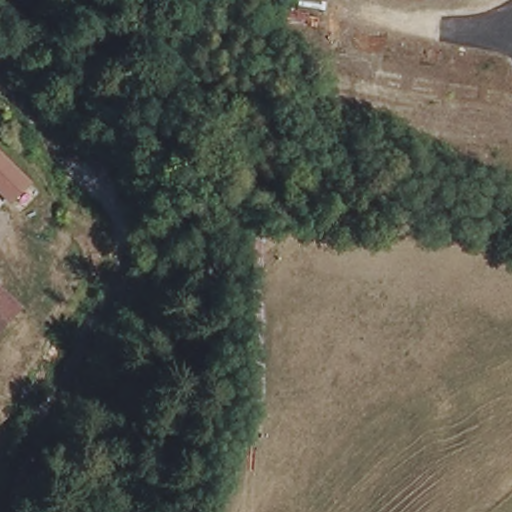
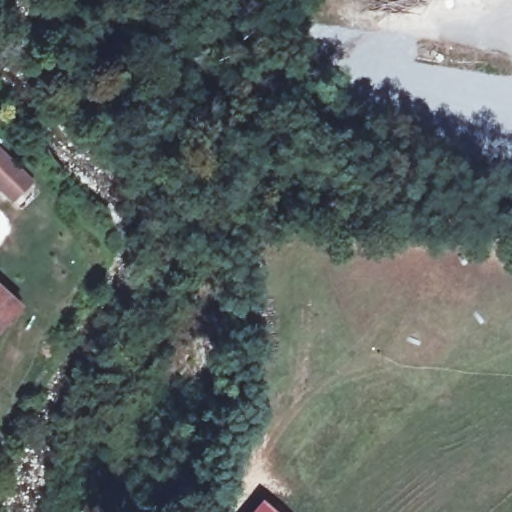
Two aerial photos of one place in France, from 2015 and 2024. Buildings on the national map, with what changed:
unchanged [(23,178),(6,198),(0,191),(0,154),(23,178)]
unchanged [(0,344),(0,284),(17,303),(0,344)]
new [(276,512),(250,512),(261,500),(276,512)]

